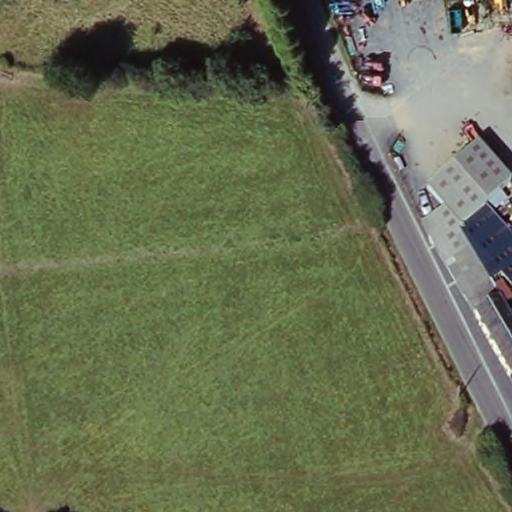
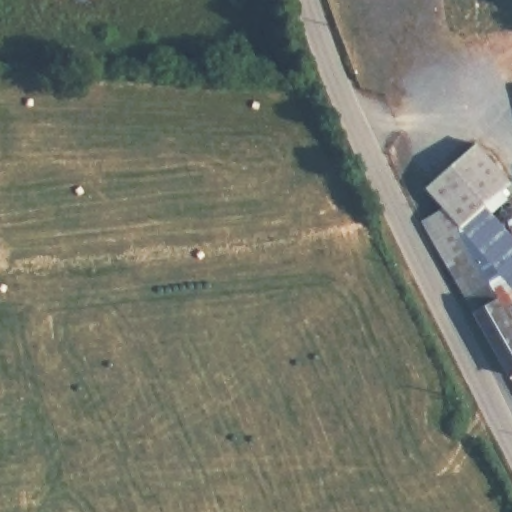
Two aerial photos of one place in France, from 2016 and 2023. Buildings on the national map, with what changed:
unchanged [(507,184),(482,208),(512,237),(512,307),(504,310),(498,301),(473,315),(448,270),(434,243),(422,224),(443,211),(426,193),(441,180),(476,148),(483,157),(507,184)]
unchanged [(473,315),(498,301),(504,310),(512,307),(512,377),(509,378),(473,315)]

